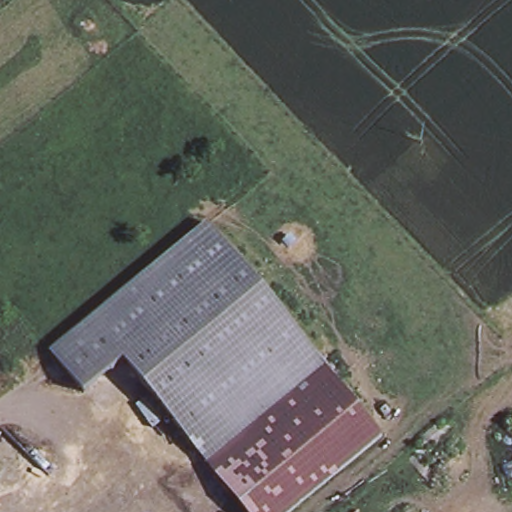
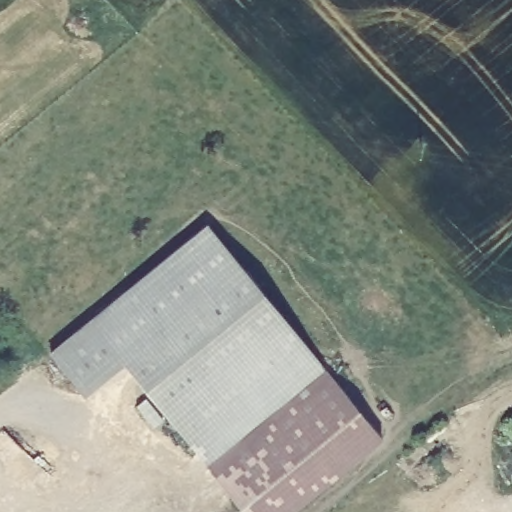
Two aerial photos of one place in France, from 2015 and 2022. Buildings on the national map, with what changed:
unchanged [(206,224),(314,356),(195,453),(121,362),(81,395),(48,354),(206,224)]
unchanged [(380,437),(288,512),(244,512),(195,453),(314,356),(380,437)]

